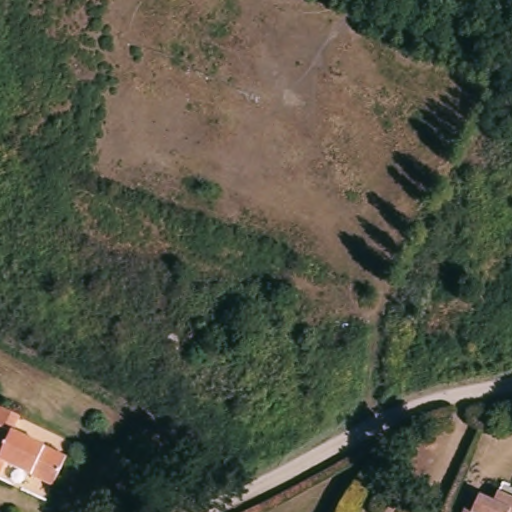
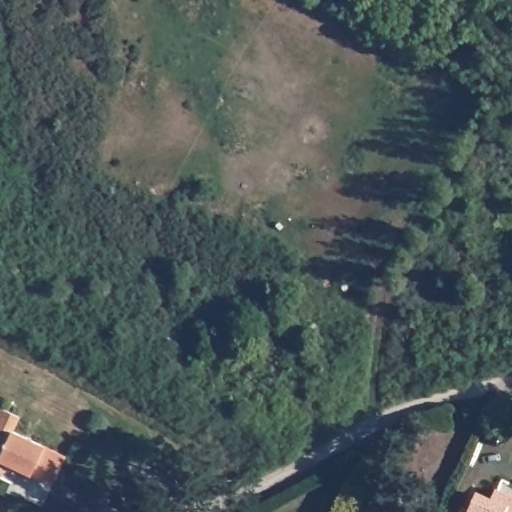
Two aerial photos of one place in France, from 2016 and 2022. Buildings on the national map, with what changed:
unchanged [(4,461),(0,470),(0,405),(19,414),(12,429),(66,455),(52,483),(4,461)]
unchanged [(463,507),(470,511),(478,494),(492,500),(496,490),(512,497),(512,512),(461,512),(463,507)]

